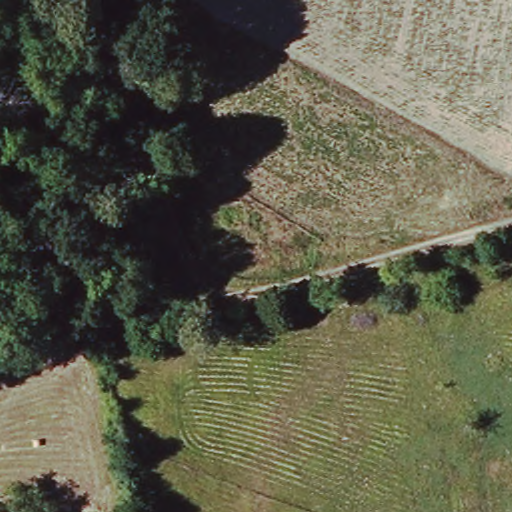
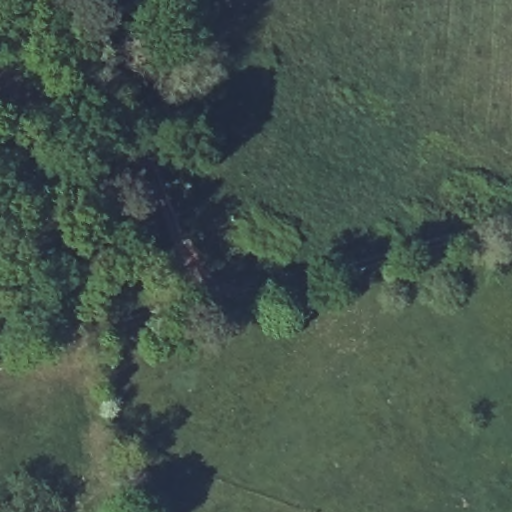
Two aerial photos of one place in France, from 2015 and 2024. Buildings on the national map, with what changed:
[]

